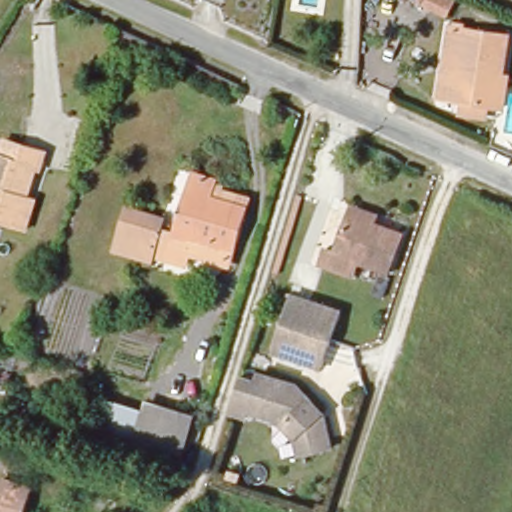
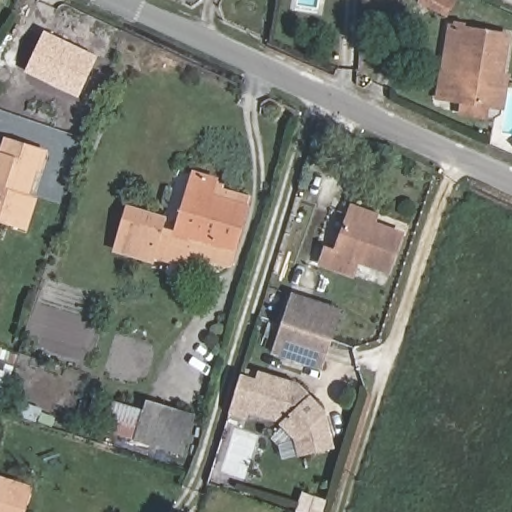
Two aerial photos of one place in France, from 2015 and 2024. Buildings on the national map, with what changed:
unchanged [(457,0),(449,20),(414,5),(416,0),(457,0)]
unchanged [(499,36),(492,108),(435,102),(444,29),(499,36)]
new [(24,72),(44,31),(99,58),(79,98),(24,72)]
unchanged [(24,232),(0,223),(0,140),(49,160),(24,232)]
unchanged [(157,229),(174,233),(177,222),(194,170),(219,178),(218,186),(250,198),(227,268),(191,258),(185,268),(149,259),(157,229)]
unchanged [(388,272),(358,261),(352,277),(324,268),(331,249),(337,252),(350,219),(356,206),(376,213),(372,227),(400,236),(388,272)]
unchanged [(124,207),(177,222),(174,233),(157,229),(149,259),(111,248),(124,207)]
unchanged [(289,325),(298,296),(342,311),(332,340),(289,325)]
unchanged [(323,369),(279,354),(289,325),(332,340),(323,369)]
unchanged [(242,373),(259,378),(260,372),(300,384),(325,411),(336,444),(304,452),(299,434),(282,419),(248,408),(248,415),(229,409),(242,373)]
unchanged [(143,411),(147,403),(195,419),(183,458),(99,430),(106,402),(143,411)]
unchanged [(27,512),(0,512),(0,490),(4,479),(34,489),(27,512)]

